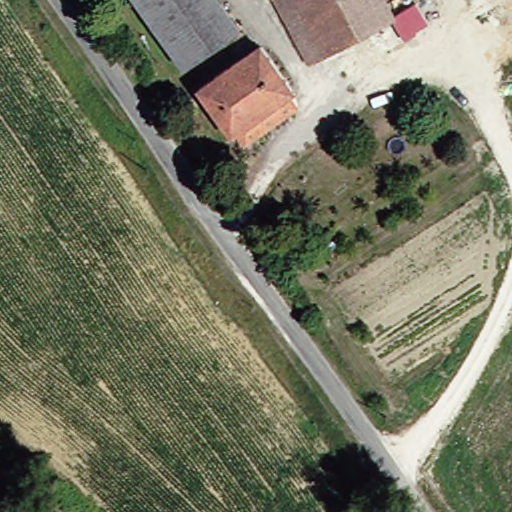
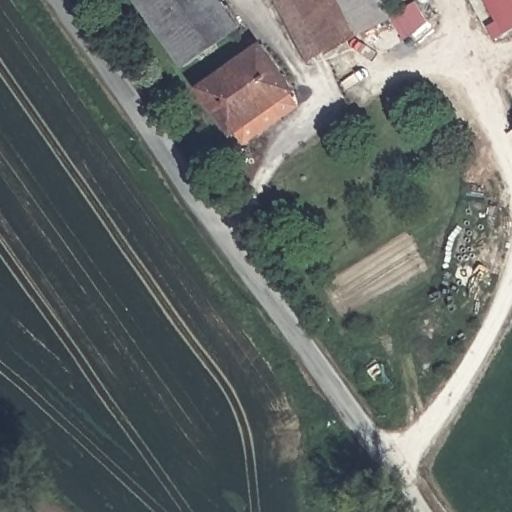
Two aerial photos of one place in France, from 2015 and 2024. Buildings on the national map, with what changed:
unchanged [(194,40),(206,62),(188,73),(146,0),(220,0),(231,18),(194,40)]
unchanged [(411,13),(307,68),(271,0),(404,0),(411,13)]
new [(505,34),(494,39),(487,28),(497,22),(486,0),(512,0),(512,30),(505,34)]
unchanged [(241,39),(206,62),(194,40),(231,18),(241,39)]
unchanged [(232,139),(202,93),(259,51),(295,96),(232,139)]
unchanged [(304,110),(242,151),(232,139),(295,96),(304,110)]

